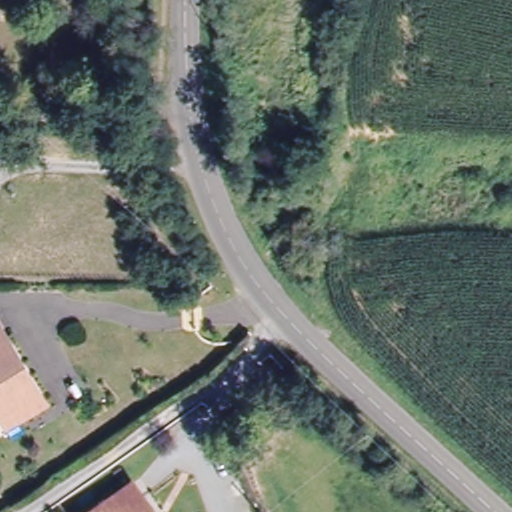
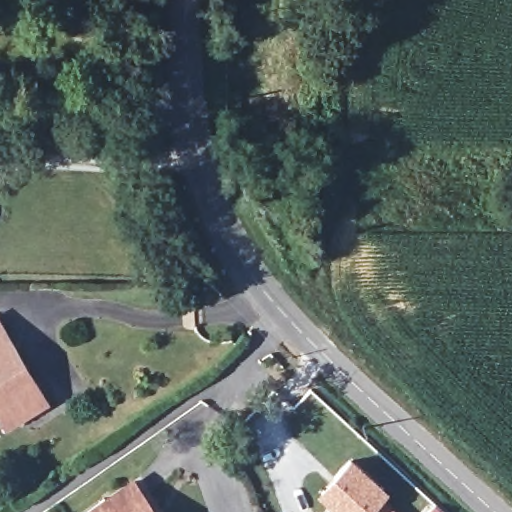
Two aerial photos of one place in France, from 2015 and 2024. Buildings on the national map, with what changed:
unchanged [(0,324),(2,327),(42,395),(10,414),(1,420),(0,419),(0,324)]
new [(330,505),(316,492),(350,453),(388,488),(382,495),(400,512),(324,512),(330,505)]
unchanged [(101,492),(120,478),(130,493),(143,512),(72,512),(101,492)]
new [(318,509),(320,512),(311,512),(318,509)]

